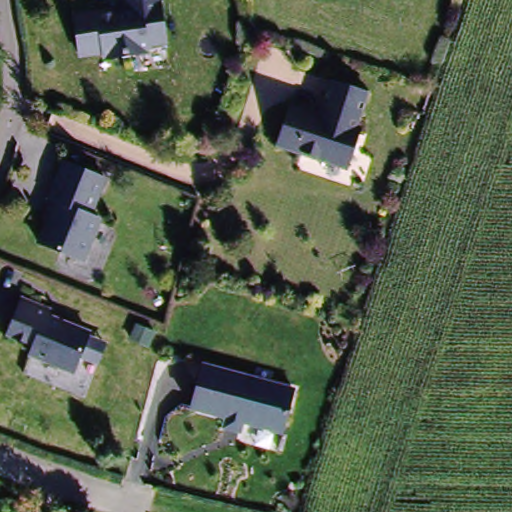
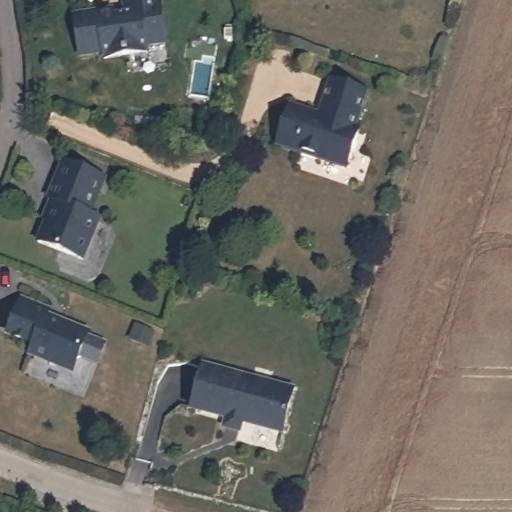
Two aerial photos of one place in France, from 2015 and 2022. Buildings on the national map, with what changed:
unchanged [(165,39),(146,42),(147,49),(103,55),(102,49),(83,52),(77,11),(111,5),(112,13),(124,12),(122,0),(159,0),(160,8),(165,39)]
unchanged [(272,137),(281,109),(284,102),(302,108),(312,111),(323,77),(362,89),(351,123),(354,124),(342,163),(320,156),(319,160),(287,149),(271,144),(272,137)]
unchanged [(411,81),(405,101),(390,96),(396,77),(411,81)]
unchanged [(99,178),(85,215),(94,219),(77,261),(32,244),(47,202),(42,200),(56,162),(99,178)]
unchanged [(43,308),(41,314),(84,332),(67,371),(24,353),(27,343),(1,332),(15,297),(43,308)]
unchanged [(219,429),(222,419),(185,409),(196,367),(290,392),(279,434),(238,424),(236,433),(219,429)]

